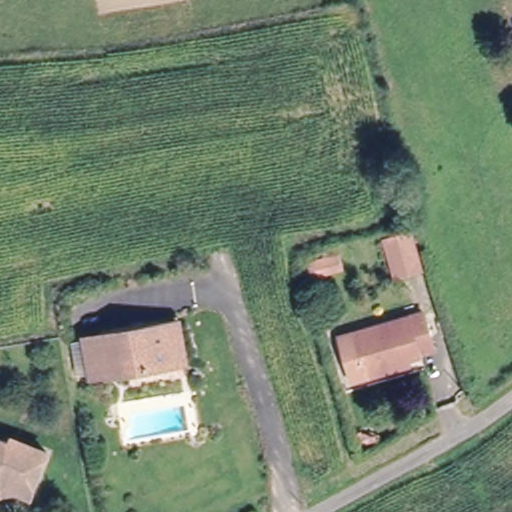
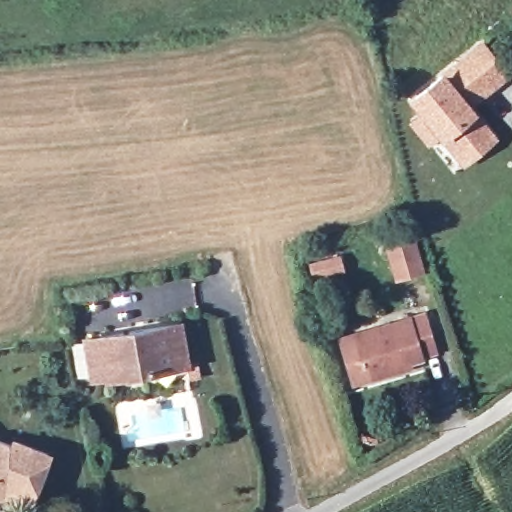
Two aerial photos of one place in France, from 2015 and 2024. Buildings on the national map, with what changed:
new [(440,139),(438,137),(428,146),(408,121),(418,113),(407,100),(442,70),(481,39),(511,73),(471,105),(476,111),(497,136),(463,166),(440,139)]
unchanged [(408,240),(418,275),(392,283),(383,247),(408,240)]
unchanged [(336,256),(342,274),(309,285),(304,269),(336,256)]
unchanged [(395,368),(361,377),(348,335),(418,316),(428,349),(414,353),(415,356),(405,359),(407,364),(395,368)]
unchanged [(171,362),(172,364),(111,375),(110,373),(94,376),(87,339),(181,322),(185,341),(188,359),(171,362)]
unchanged [(16,439),(50,452),(33,497),(21,492),(1,496),(0,496),(0,438),(14,444),(16,439)]

